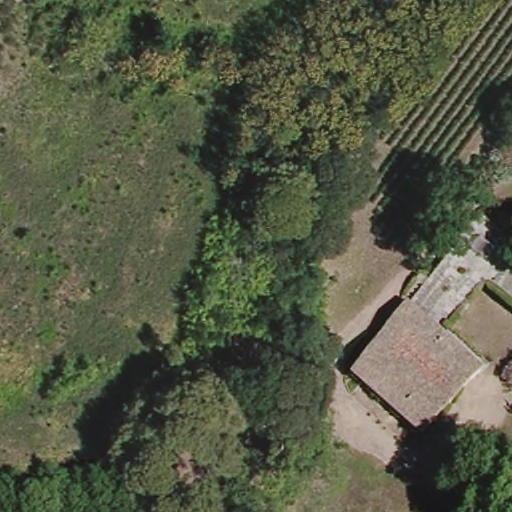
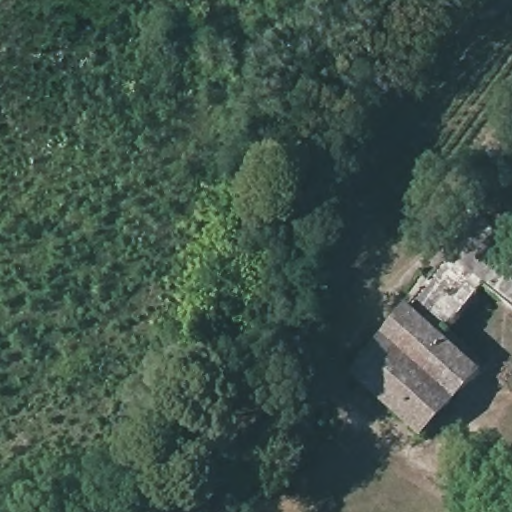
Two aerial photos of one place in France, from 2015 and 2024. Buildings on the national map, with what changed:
unchanged [(478,300),(448,340),(477,367),(470,376),(473,380),(415,441),(348,380),(472,223),(481,212),(512,239),(512,246),(508,253),(512,257),(512,326),(478,300)]

